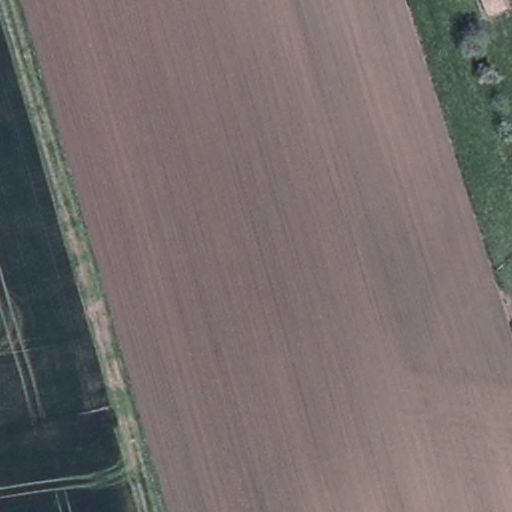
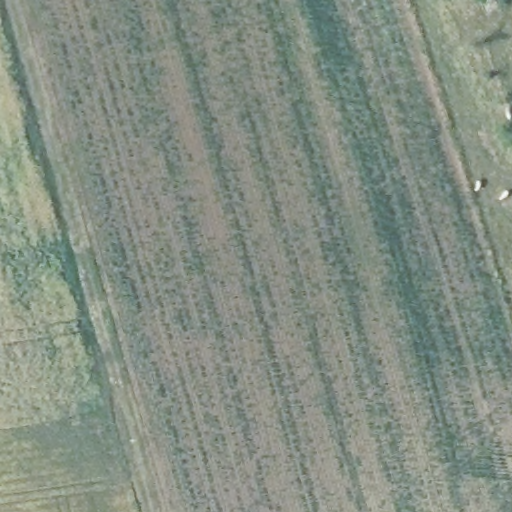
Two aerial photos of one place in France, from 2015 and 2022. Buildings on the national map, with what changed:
unchanged [(506,9),(487,17),(480,0),(503,0),(506,9)]

